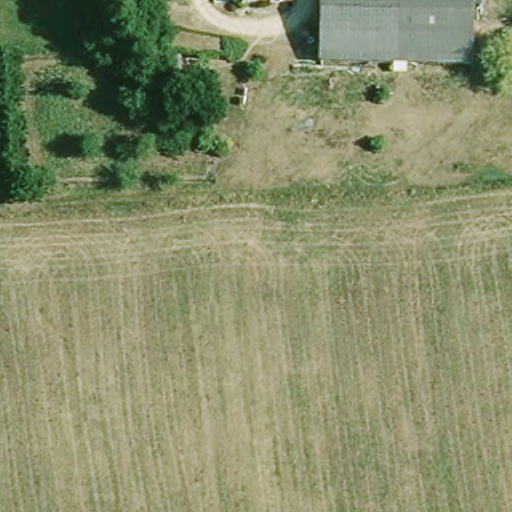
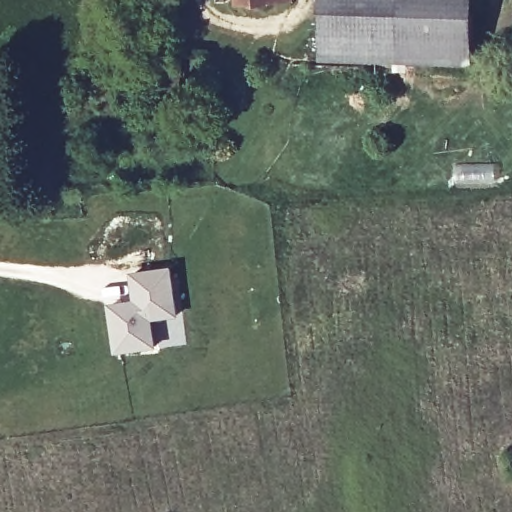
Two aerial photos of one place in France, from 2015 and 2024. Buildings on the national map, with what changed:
unchanged [(335,58),(336,0),(486,0),(485,61),(335,58)]
unchanged [(162,62),(183,66),(177,114),(157,110),(162,62)]
new [(135,301),(132,273),(172,267),(179,316),(153,321),(156,348),(116,353),(109,305),(135,301)]

